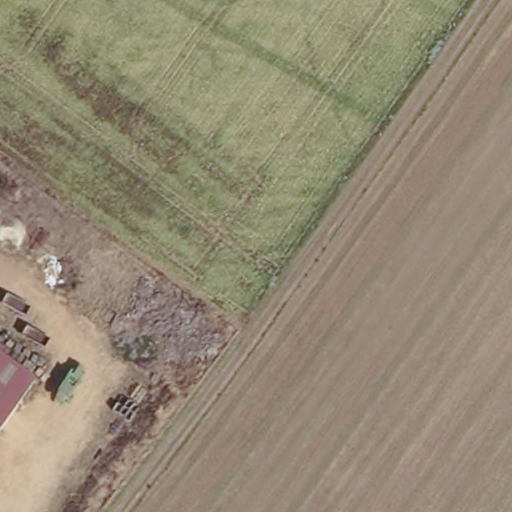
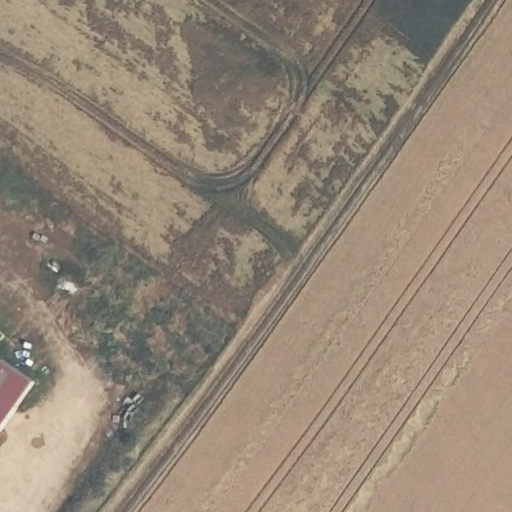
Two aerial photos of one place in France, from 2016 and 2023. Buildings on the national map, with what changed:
unchanged [(0,434),(0,358),(35,383),(0,434)]

